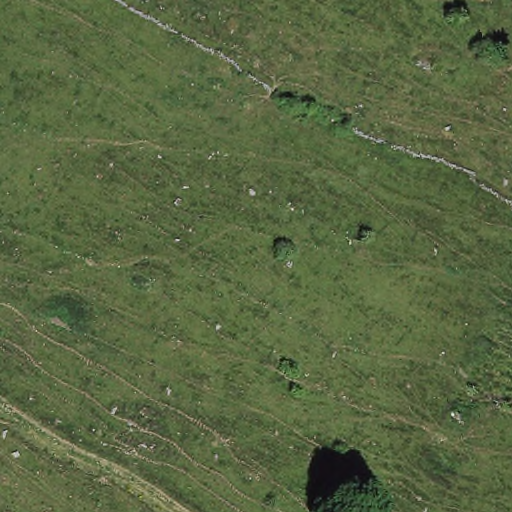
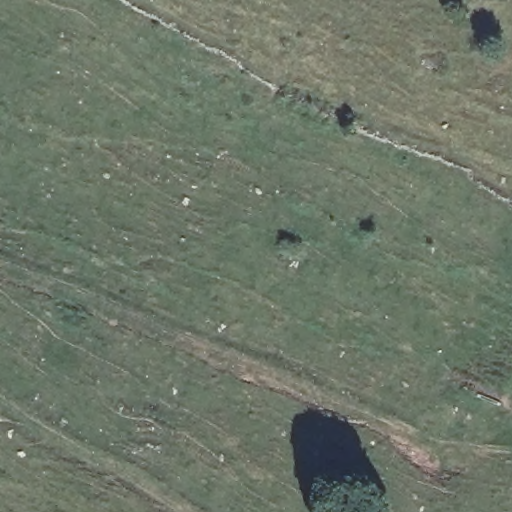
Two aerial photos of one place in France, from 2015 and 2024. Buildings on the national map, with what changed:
[]

